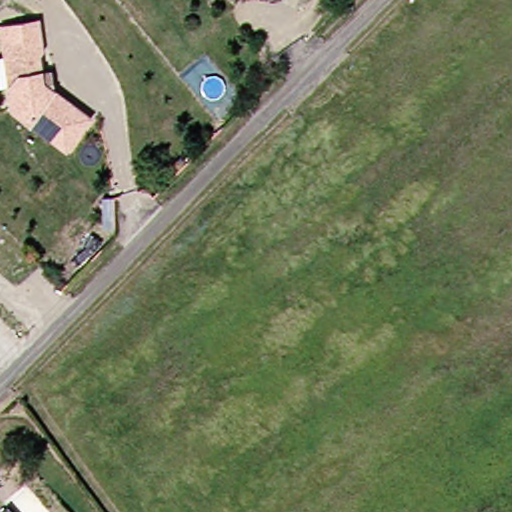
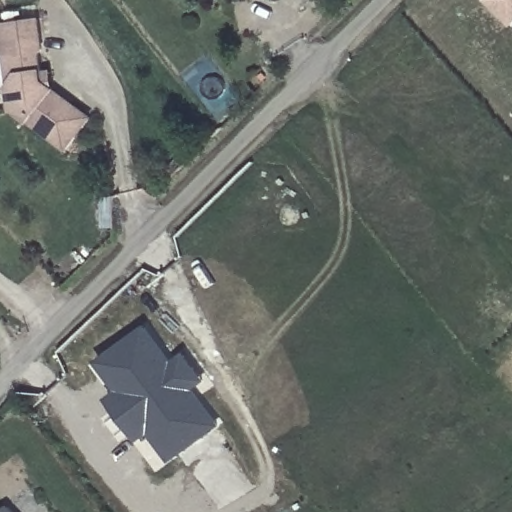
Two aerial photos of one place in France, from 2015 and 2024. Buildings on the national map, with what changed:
demolished [(0,13),(0,0),(15,0),(0,13)]
new [(512,24),(491,0),(512,0),(512,24)]
unchanged [(38,45),(31,46),(38,80),(87,121),(61,151),(7,105),(4,86),(0,64),(0,29),(34,21),(38,45)]
new [(122,390),(101,361),(150,325),(175,357),(185,350),(208,380),(196,390),(222,426),(173,460),(152,434),(143,440),(112,398),(122,390)]
unchanged [(9,512),(0,512),(0,509),(3,506),(9,512)]

